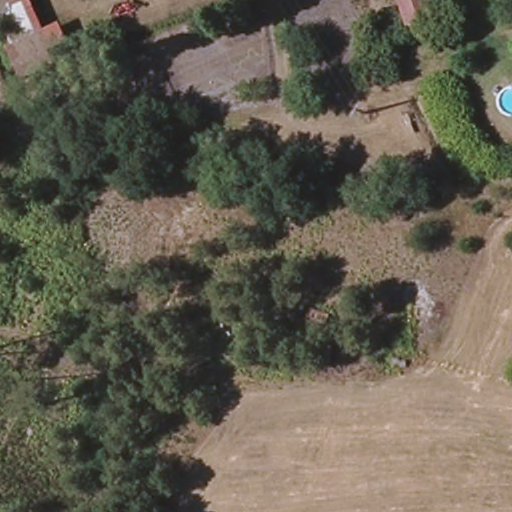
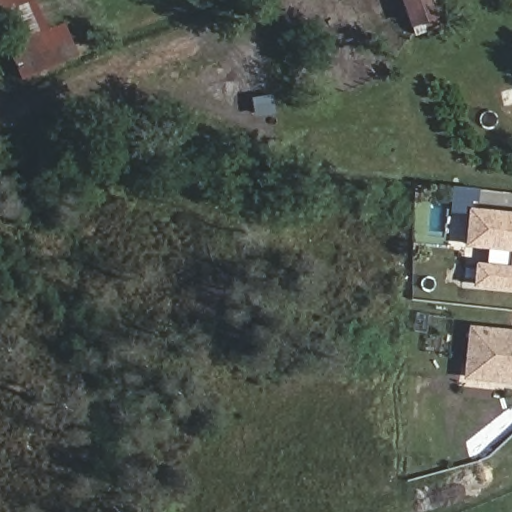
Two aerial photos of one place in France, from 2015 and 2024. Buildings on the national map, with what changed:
unchanged [(28,0),(36,23),(57,15),(72,54),(16,75),(0,30),(0,0),(28,0)]
unchanged [(398,21),(391,0),(436,0),(438,6),(398,21)]
new [(462,247),(467,207),(512,212),(512,291),(471,287),(474,262),(507,265),(509,252),(462,247)]
new [(512,384),(460,379),(466,324),(512,329),(512,384)]

